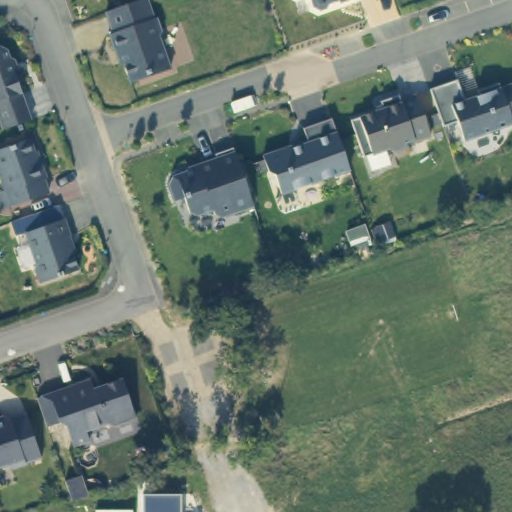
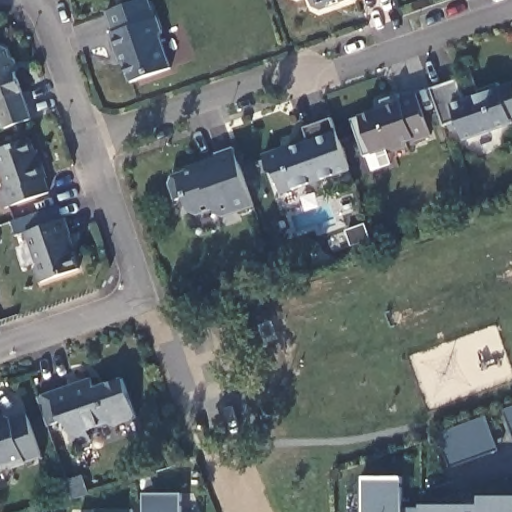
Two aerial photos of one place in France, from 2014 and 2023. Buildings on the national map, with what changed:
unchanged [(130,82),(120,51),(116,53),(110,33),(113,32),(106,11),(132,2),(139,0),(148,0),(154,18),(157,17),(162,31),(159,36),(170,68),(130,82)]
unchanged [(330,1),(327,6),(318,9),(312,7),(310,0),(333,0),(330,1)]
unchanged [(339,1),(339,0),(342,0),(339,1)]
unchanged [(0,116),(0,46),(7,49),(32,120),(5,129),(0,116)]
unchanged [(464,100),(479,95),(477,90),(498,83),(499,88),(512,84),(512,118),(510,119),(512,123),(463,140),(457,121),(443,126),(442,122),(430,88),(457,79),(464,100)]
unchanged [(413,142),(412,139),(406,142),(407,146),(393,151),(387,148),(363,156),(350,119),(382,108),(380,101),(398,94),(400,99),(415,94),(423,117),(430,136),(413,142)]
unchanged [(332,117),(350,169),(281,193),(274,174),(268,171),(262,155),(291,145),(292,147),(308,142),(303,127),(332,117)]
unchanged [(29,139),(38,162),(40,161),(47,178),(44,179),(48,193),(5,208),(0,191),(5,188),(0,172),(0,150),(29,139)]
unchanged [(201,163),(203,171),(219,165),(214,153),(233,147),(244,178),(254,205),(221,217),(214,214),(213,209),(196,215),(189,212),(184,196),(174,200),(168,182),(171,176),(188,170),(187,167),(201,163)]
unchanged [(42,282),(36,267),(37,263),(28,232),(66,218),(72,234),(68,236),(79,268),(42,282)]
unchanged [(91,379),(94,388),(123,379),(135,416),(113,425),(106,423),(86,429),(90,439),(73,444),(66,425),(60,422),(47,426),(37,398),(91,379)]
new [(512,430),(504,409),(512,406),(512,430)]
unchanged [(6,415),(12,418),(27,413),(42,457),(12,467),(6,465),(0,467),(0,417),(6,415)]
new [(486,416),(500,452),(450,468),(437,433),(486,416)]
new [(512,475),(511,474),(512,474),(512,475)]
new [(402,509),(424,509),(423,506),(468,506),(468,499),(480,499),(512,499),(512,512),(363,512),(363,477),(402,477),(402,509)]
unchanged [(88,478),(93,493),(86,495),(74,499),(69,485),(88,478)]
unchanged [(180,496),(181,512),(142,512),(142,495),(180,496)]
unchanged [(130,510),(131,512),(97,512),(97,511),(130,510)]

